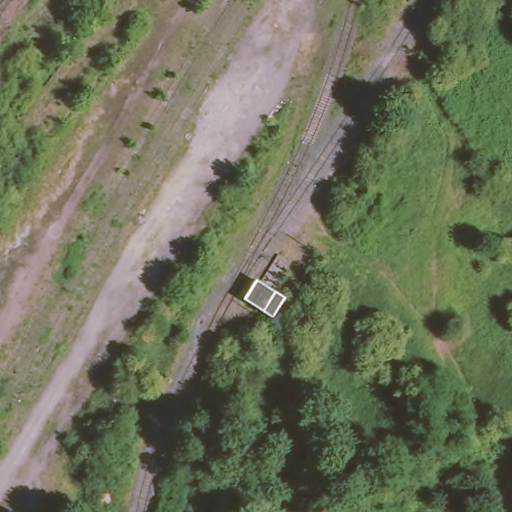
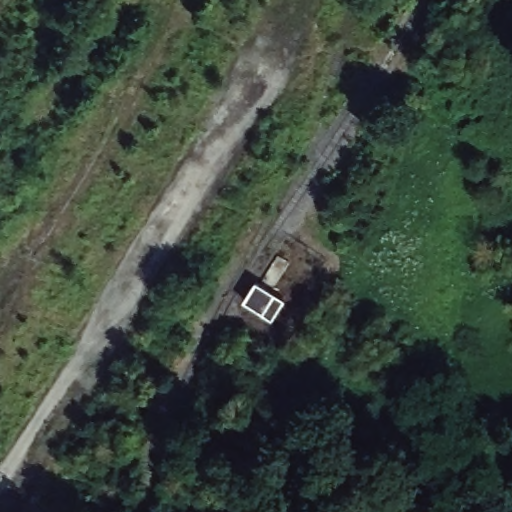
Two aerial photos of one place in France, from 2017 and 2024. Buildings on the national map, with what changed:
unchanged [(281,295),(271,315),(243,300),(254,280),(281,295)]

